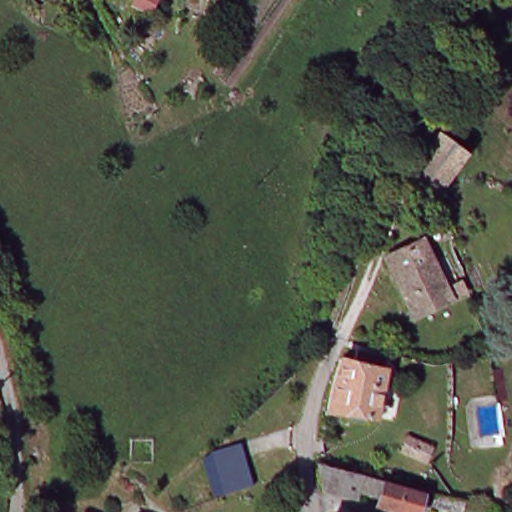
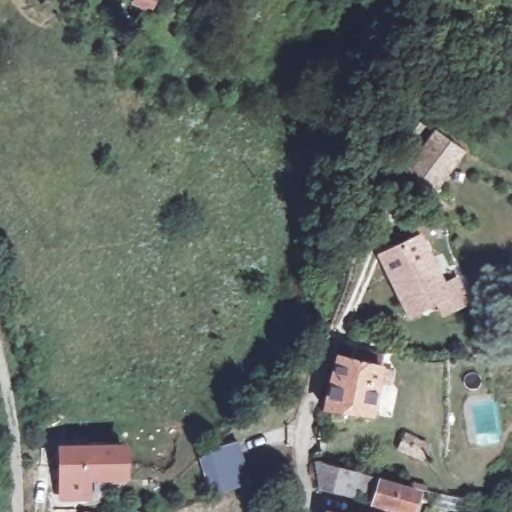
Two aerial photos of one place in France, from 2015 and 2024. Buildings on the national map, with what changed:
unchanged [(146,0),(159,0),(162,2),(152,19),(139,12),(146,0)]
unchanged [(431,136),(461,153),(446,179),(442,184),(413,167),(424,149),(431,136)]
unchanged [(461,291),(412,316),(384,254),(394,250),(391,242),(403,237),(406,243),(419,239),(442,281),(456,275),(461,291)]
unchanged [(369,417),(323,408),(329,360),(342,363),(344,350),(358,351),(356,366),(366,369),(366,384),(376,388),(369,417)]
unchanged [(418,463),(393,451),(402,436),(425,447),(418,463)]
unchanged [(238,439),(250,484),(223,491),(210,495),(201,456),(211,446),(238,439)]
new [(57,445),(126,444),(128,480),(92,481),(91,500),(58,501),(57,445)]
unchanged [(367,501),(371,485),(355,483),(351,498),(314,489),(308,460),(371,474),(371,480),(401,484),(401,487),(413,489),(409,508),(399,507),(367,501)]
unchanged [(429,505),(434,486),(442,488),(459,491),(454,510),(429,505)]
unchanged [(340,512),(327,512),(328,510),(340,512)]

